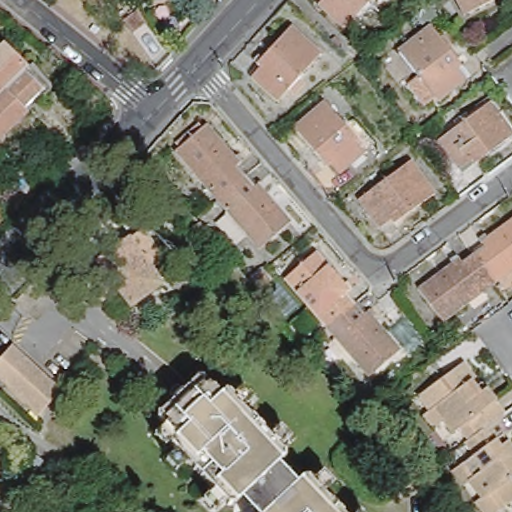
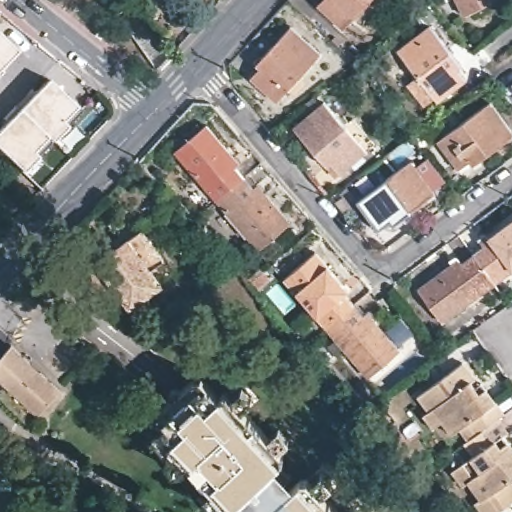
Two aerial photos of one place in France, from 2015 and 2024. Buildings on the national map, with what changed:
unchanged [(344,23),(318,0),(364,0),(344,23)]
unchanged [(505,1),(469,21),(459,0),(504,0),(505,1)]
unchanged [(321,52),(277,100),(250,76),(260,67),(255,63),(291,25),(321,52)]
unchanged [(461,63),(458,67),(467,79),(439,101),(398,51),(430,25),(461,63)]
new [(0,69),(0,32),(19,50),(0,69)]
demolished [(50,94),(0,141),(0,52),(5,47),(50,94)]
new [(24,172),(0,149),(0,128),(48,78),(82,110),(24,172)]
unchanged [(369,139),(334,168),(326,157),(321,161),(289,122),(320,96),(340,120),(347,113),(369,139)]
unchanged [(512,125),(512,138),(479,164),(476,160),(465,167),(444,139),(495,101),(512,125)]
unchanged [(175,150),(206,124),(240,162),(236,165),(245,176),(217,199),(175,150)]
unchanged [(419,129),(429,142),(421,148),(412,135),(419,129)]
unchanged [(436,192),(395,224),(391,218),(380,228),(359,200),(412,161),(436,192)]
unchanged [(245,176),(254,186),(257,183),(290,221),(278,231),(280,234),(275,238),(273,236),(259,248),(217,199),(245,176)]
new [(334,205),(350,193),(361,208),(346,219),(334,205)]
unchanged [(474,255),(484,247),(481,242),(512,219),(512,269),(494,283),(474,255)]
unchanged [(212,235),(194,248),(184,234),(200,222),(212,235)]
unchanged [(163,258),(153,265),(169,286),(137,309),(126,293),(111,303),(95,280),(109,269),(104,263),(146,234),(163,258)]
unchanged [(284,277),(315,250),(348,289),(344,292),(354,304),(327,327),(284,277)]
unchanged [(442,321),(418,289),(458,258),(462,263),(474,255),(494,283),(442,321)]
unchanged [(252,285),(246,291),(242,287),(247,281),(252,285)]
unchanged [(354,304),(364,315),(368,311),(402,352),(396,357),(394,355),(369,376),(327,327),(354,304)]
unchanged [(0,359),(12,346),(59,389),(37,414),(0,381),(0,359)]
unchanged [(428,414),(433,410),(422,395),(467,362),(479,378),(474,382),(479,389),(487,384),(499,401),(508,412),(500,418),(479,433),(470,421),(457,431),(447,419),(437,426),(428,414)]
unchanged [(203,483),(177,455),(166,465),(155,453),(166,443),(160,436),(155,441),(145,431),(156,421),(148,413),(150,404),(183,373),(193,372),(209,390),(216,383),(223,391),(233,380),(244,392),(233,402),(259,430),(270,420),(282,432),(271,442),(273,445),(272,455),(226,498),(218,499),(214,495),(204,505),(193,493),(203,483)]
unchanged [(486,498),(471,478),(466,482),(456,469),(465,462),(478,454),(468,441),(479,433),(500,418),(512,432),(507,435),(512,441),(512,503),(504,509),(500,512),(488,512),(480,502),(486,498)]
unchanged [(45,459),(38,469),(21,455),(29,445),(45,459)]
unchanged [(298,471),(301,474),(312,465),(322,476),(312,486),(336,512),(245,512),(288,472),(298,471)]
unchanged [(356,512),(338,512),(348,503),(356,512)]

